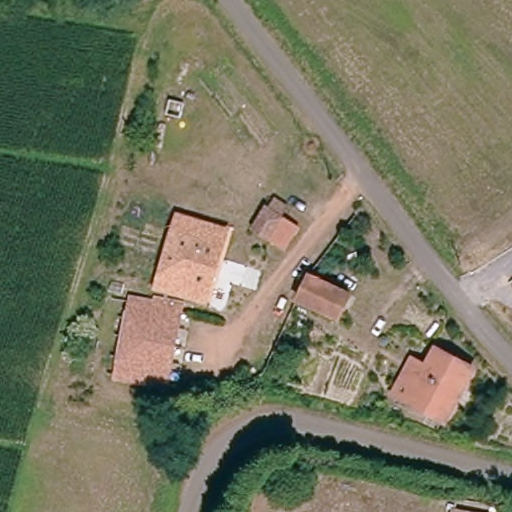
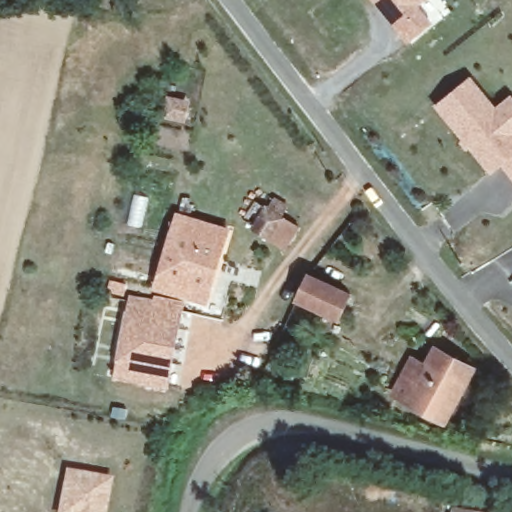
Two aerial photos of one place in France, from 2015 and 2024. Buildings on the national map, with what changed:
new [(431,21),(406,42),(371,0),(425,0),(418,5),(431,21)]
new [(510,93),(512,95),(512,179),(501,165),(489,174),(468,147),(464,150),(458,142),(462,139),(433,106),(470,76),(495,107),(510,93)]
unchanged [(283,201),(279,210),(297,220),(287,245),(254,228),(268,194),(279,199),(283,201)]
unchanged [(156,284),(172,215),(223,229),(208,297),(182,290),(156,284)]
unchanged [(305,272),(349,295),(339,316),(296,295),(305,272)]
unchanged [(110,369),(126,292),(180,301),(165,381),(110,369)]
unchanged [(404,369),(411,352),(436,363),(443,349),(473,361),(445,418),(413,404),(392,395),(404,369)]
new [(114,478),(107,512),(59,512),(66,468),(114,478)]

